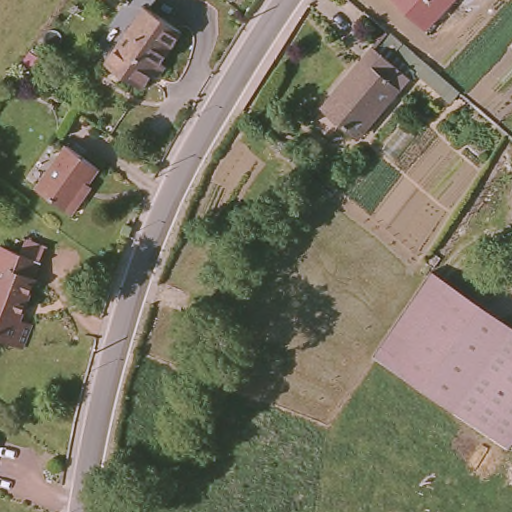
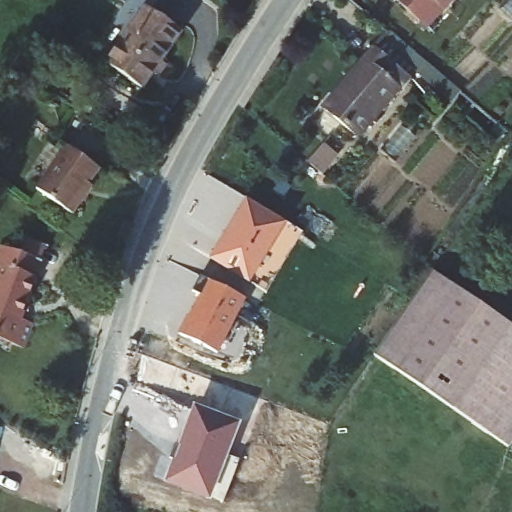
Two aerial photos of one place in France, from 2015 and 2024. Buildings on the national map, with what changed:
unchanged [(427,27),(398,0),(454,0),(427,27)]
unchanged [(182,33),(142,90),(107,65),(147,7),(182,33)]
unchanged [(380,45),(391,32),(460,90),(450,103),(418,76),(386,49),(383,47),(380,45)]
unchanged [(333,107),(383,47),(418,76),(367,136),(333,107)]
new [(307,162),(323,143),(339,155),(323,175),(307,162)]
unchanged [(85,202),(72,220),(35,194),(65,151),(97,174),(87,189),(91,192),(85,202)]
new [(209,259),(246,197),(286,223),(250,284),(209,259)]
unchanged [(19,352),(0,345),(0,251),(18,257),(24,242),(47,251),(42,266),(35,282),(20,324),(28,328),(19,352)]
unchanged [(430,272),(512,331),(512,433),(502,447),(371,355),(430,272)]
new [(218,354),(178,333),(187,315),(190,316),(201,295),(193,290),(200,276),(246,300),(218,354)]
new [(194,405),(240,423),(210,501),(164,482),(194,405)]

